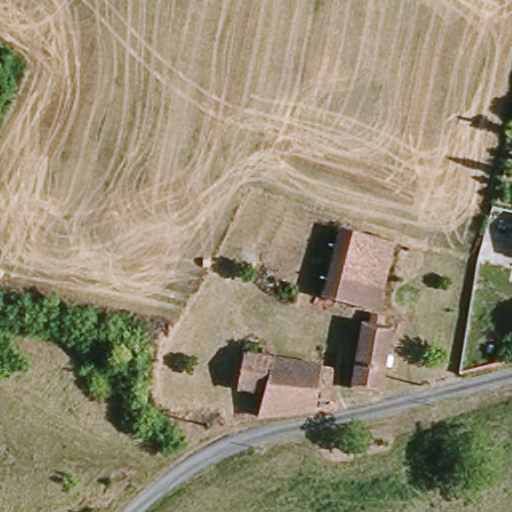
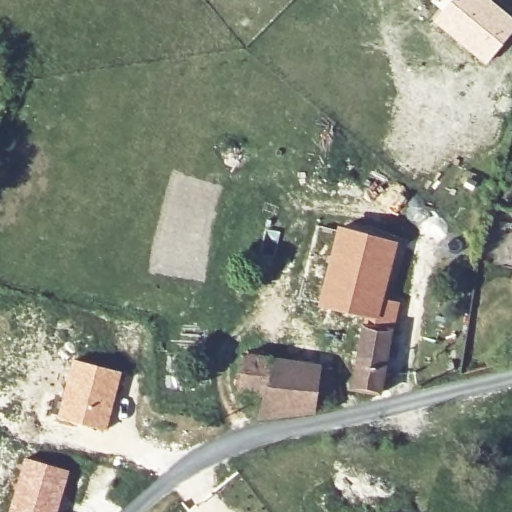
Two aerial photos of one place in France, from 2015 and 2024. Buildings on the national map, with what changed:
new [(512,16),(512,33),(486,65),(432,20),(450,0),(492,0),(512,16)]
unchanged [(375,311),(322,298),(339,231),(392,245),(375,311)]
unchanged [(512,239),(512,246),(510,246),(512,239)]
unchanged [(363,321),(370,323),(372,315),(383,318),(382,326),(390,330),(375,395),(349,390),(363,321)]
unchanged [(251,346),(268,350),(265,360),(337,372),(339,408),(256,422),(260,393),(241,389),(251,346)]
new [(72,358),(122,371),(106,431),(55,420),(72,358)]
new [(24,456),(70,470),(57,512),(8,512),(24,456)]

